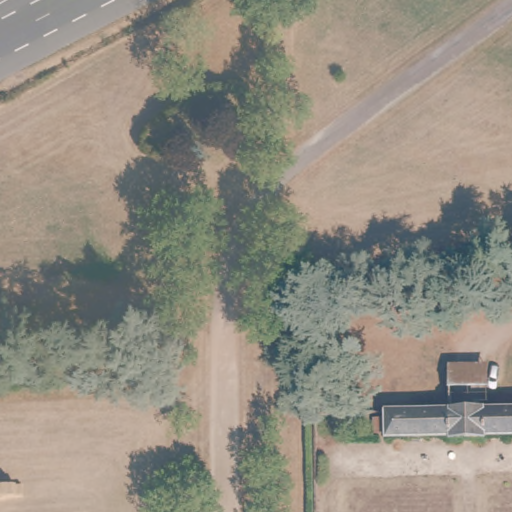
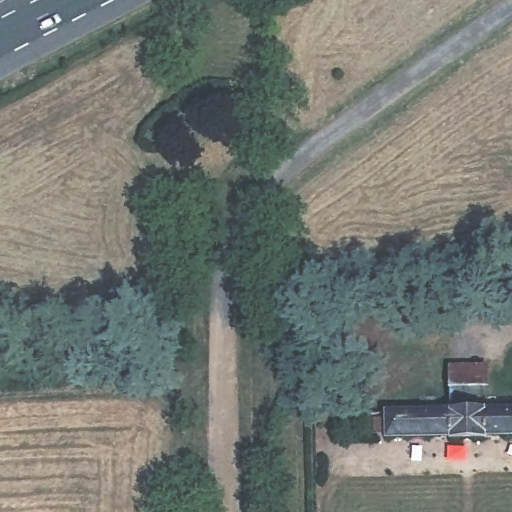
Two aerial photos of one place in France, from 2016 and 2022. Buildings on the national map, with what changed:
unchanged [(494,370),(494,407),(449,408),(449,371),(494,370)]
unchanged [(512,407),(512,442),(394,443),(393,409),(449,408),(494,407),(512,407)]

